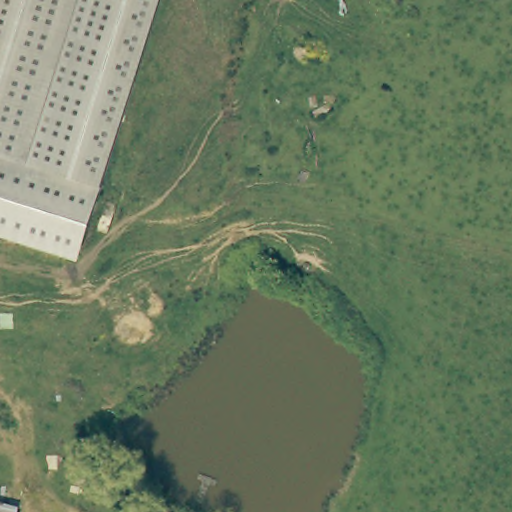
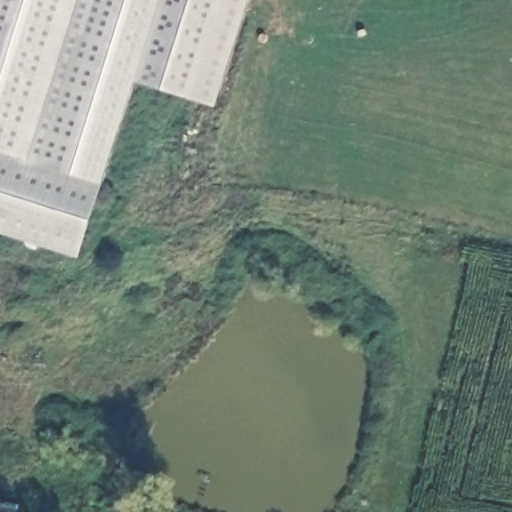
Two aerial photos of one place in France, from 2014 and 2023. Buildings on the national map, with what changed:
unchanged [(172,0),(87,263),(0,235),(0,0),(172,0)]
new [(251,0),(217,108),(145,86),(172,0),(251,0)]

